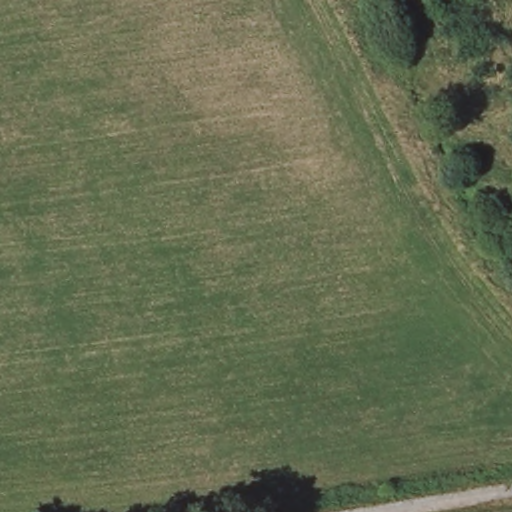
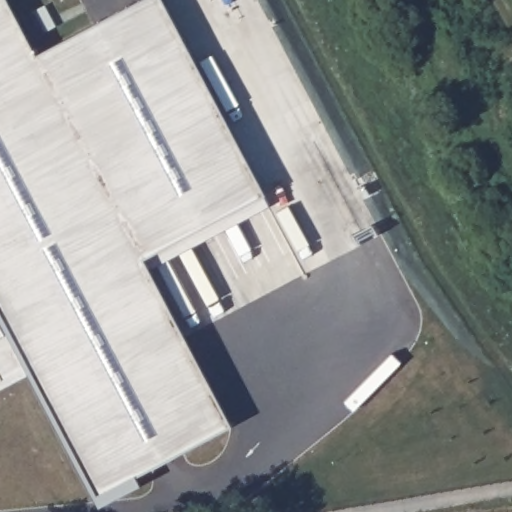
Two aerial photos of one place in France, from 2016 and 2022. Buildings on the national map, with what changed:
new [(94,498),(28,373),(0,388),(0,382),(26,369),(15,374),(0,382),(0,0),(7,0),(35,54),(137,0),(161,0),(262,194),(268,207),(147,269),(230,426),(135,477),(140,486),(99,507),(94,498)]

